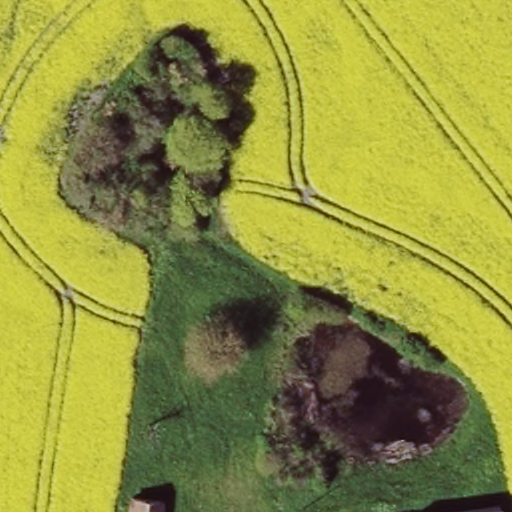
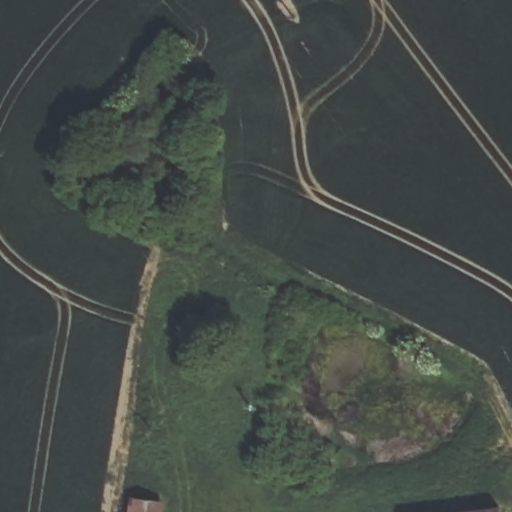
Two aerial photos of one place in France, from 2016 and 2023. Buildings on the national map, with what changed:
unchanged [(171,497),(168,512),(131,512),(134,495),(171,497)]
unchanged [(502,499),(503,512),(397,512),(502,499)]

